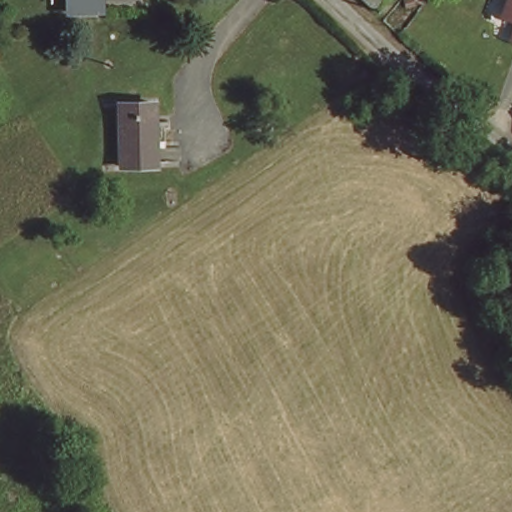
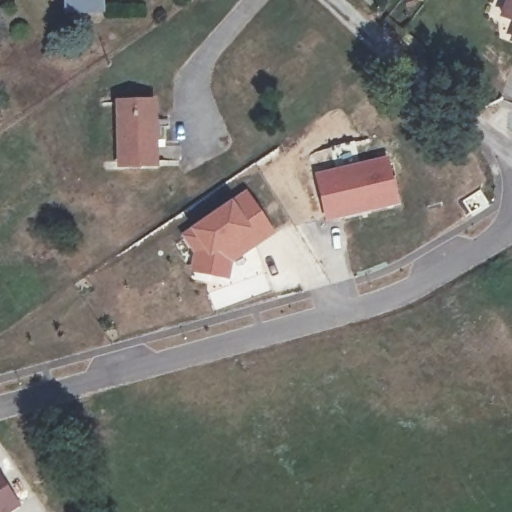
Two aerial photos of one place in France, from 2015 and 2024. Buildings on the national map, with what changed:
unchanged [(102,14),(67,14),(67,0),(102,0),(102,14)]
unchanged [(391,2),(382,11),(371,0),(388,0),(391,2)]
unchanged [(503,0),(512,0),(512,13),(499,8),(503,0)]
unchanged [(512,25),(512,34),(509,32),(512,25)]
unchanged [(150,97),(153,163),(124,164),(122,99),(150,97)]
new [(397,204),(326,221),(313,175),(385,156),(397,204)]
new [(246,188),(276,233),(232,262),(228,280),(188,273),(191,254),(178,234),(246,188)]
new [(20,506),(12,512),(0,512),(0,475),(20,506)]

